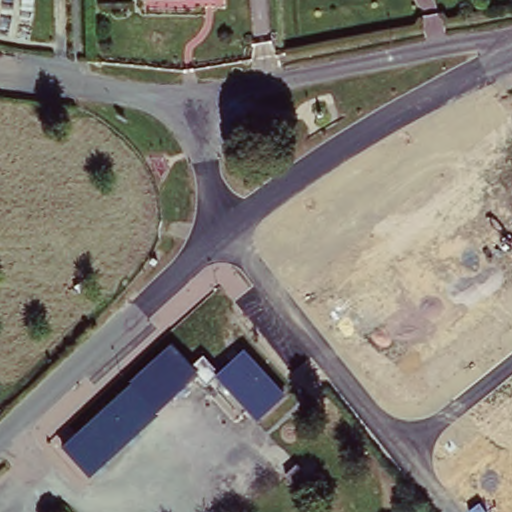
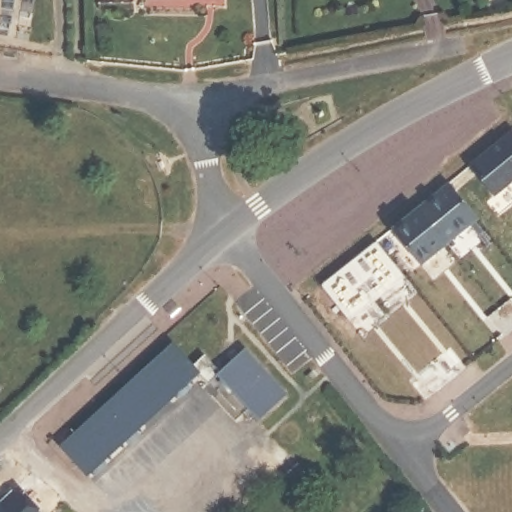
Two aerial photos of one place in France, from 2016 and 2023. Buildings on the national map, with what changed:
unchanged [(151,10),(150,0),(176,0),(176,8),(151,10)]
demolished [(336,119),(312,126),(306,105),(330,96),(336,119)]
new [(512,175),(494,190),(472,160),(512,128),(512,175)]
new [(453,181),(480,216),(421,262),(392,229),(453,181)]
new [(377,242),(403,277),(350,321),(322,286),(377,242)]
unchanged [(206,386),(196,377),(88,470),(62,441),(170,345),(187,365),(201,353),(220,375),(206,386)]
unchanged [(220,375),(247,353),(283,396),(258,416),(220,375)]
new [(314,370),(318,375),(313,380),(308,375),(314,370)]
unchanged [(357,424),(373,447),(362,454),(346,432),(357,424)]
unchanged [(330,470),(302,493),(283,470),(310,447),(330,470)]

